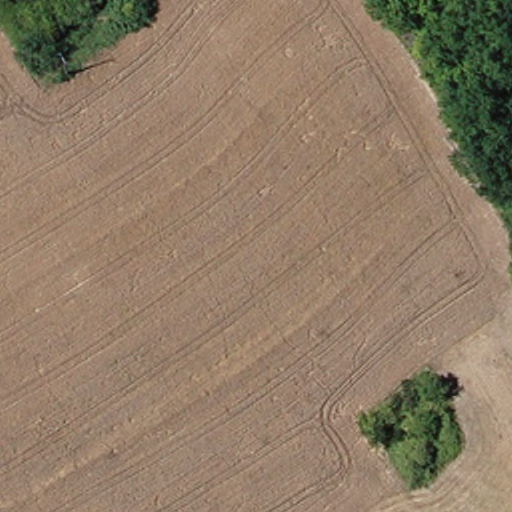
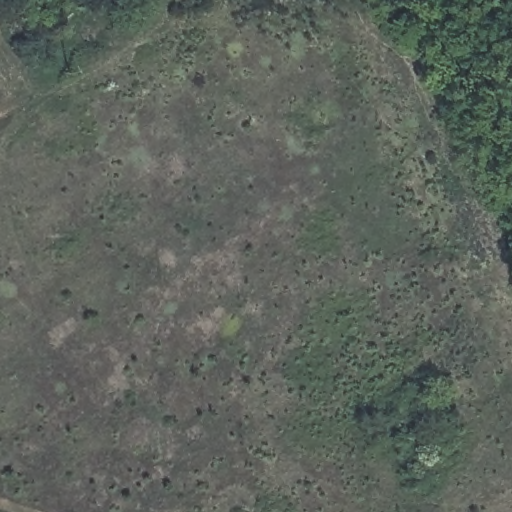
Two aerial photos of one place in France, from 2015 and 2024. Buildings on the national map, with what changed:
[]

